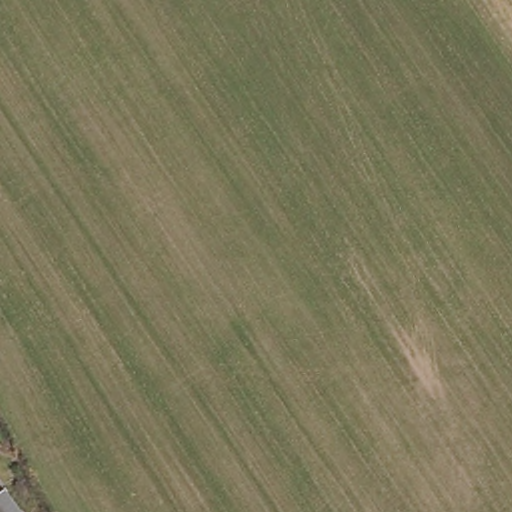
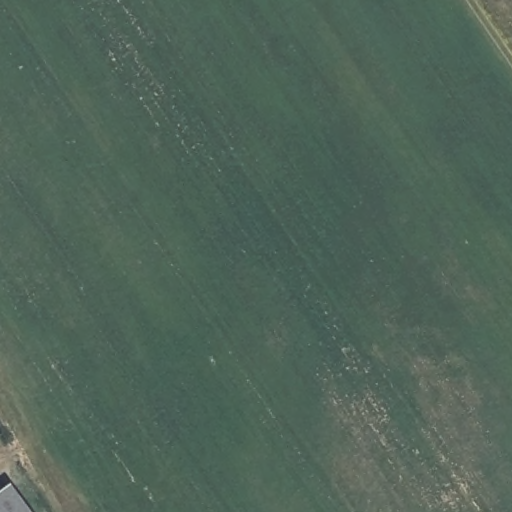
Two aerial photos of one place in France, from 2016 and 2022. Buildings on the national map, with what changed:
unchanged [(19,512),(0,512),(0,488),(19,512)]

